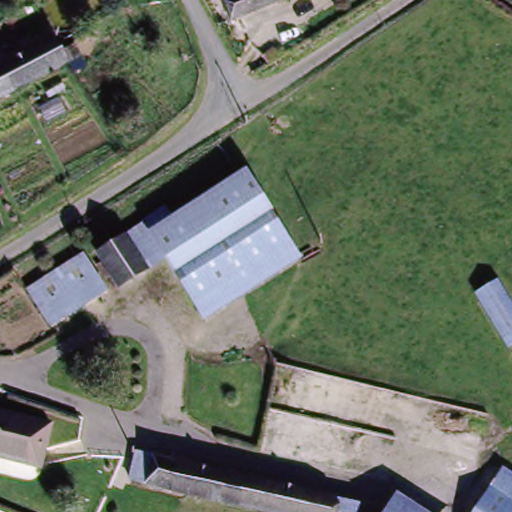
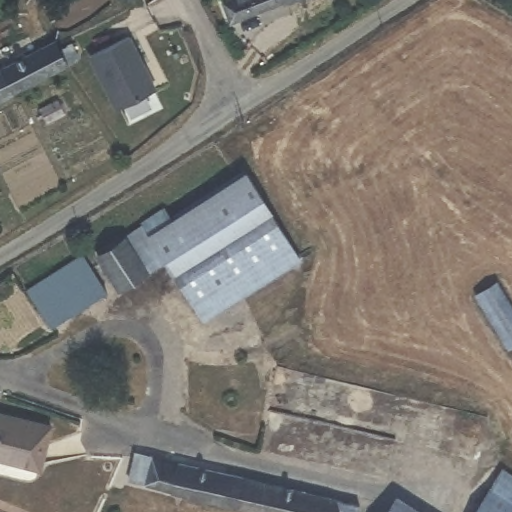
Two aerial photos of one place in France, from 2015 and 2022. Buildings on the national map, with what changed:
unchanged [(202,7),(221,0),(280,0),(212,27),(202,7)]
new [(93,56),(131,37),(147,68),(145,69),(157,93),(121,111),(93,56)]
unchanged [(47,40),(58,61),(0,91),(0,64),(47,40)]
unchanged [(249,164),(305,256),(206,320),(172,260),(123,287),(102,249),(249,164)]
unchanged [(47,330),(24,291),(77,261),(100,300),(47,330)]
unchanged [(475,293),(497,277),(512,306),(512,343),(505,347),(475,293)]
unchanged [(52,421),(40,465),(0,457),(0,409),(52,421)]
unchanged [(361,512),(268,512),(142,489),(147,462),(362,502),(361,512)]
unchanged [(512,472),(512,498),(512,499),(512,512),(465,512),(498,465),(512,472)]
unchanged [(391,490),(431,512),(377,512),(379,509),(391,490)]

